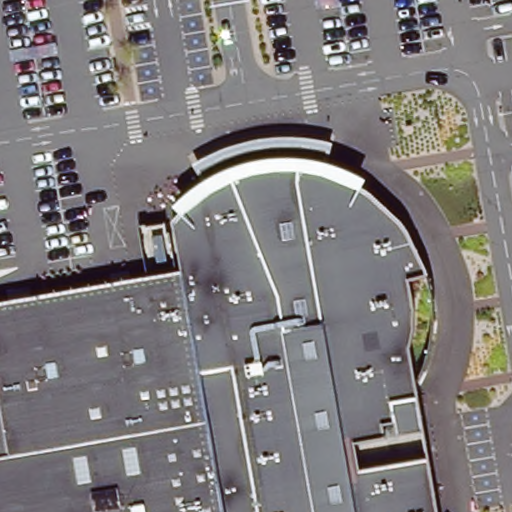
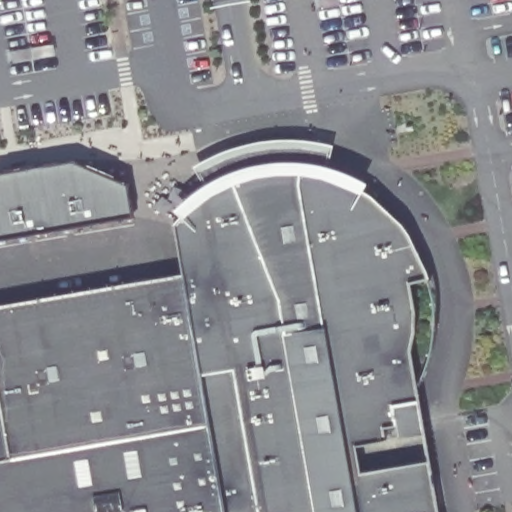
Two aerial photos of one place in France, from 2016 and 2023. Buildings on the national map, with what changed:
unchanged [(179,275),(184,275),(175,225),(183,215),(196,204),(211,192),(197,171),(200,170),(202,169),(212,164),(225,157),(235,155),(250,150),(267,146),(285,145),(303,146),(315,147),(322,149),(325,149),(334,151),(326,175),(345,181),(363,190),(374,197),(388,209),(403,225),(411,235),(421,254),(427,271),(431,280),(412,285),(417,313),(416,333),(412,351),(440,512),(0,512),(0,306),(150,280),(179,275)]
new [(124,184),(129,217),(0,239),(0,172),(67,160),(124,184)]

